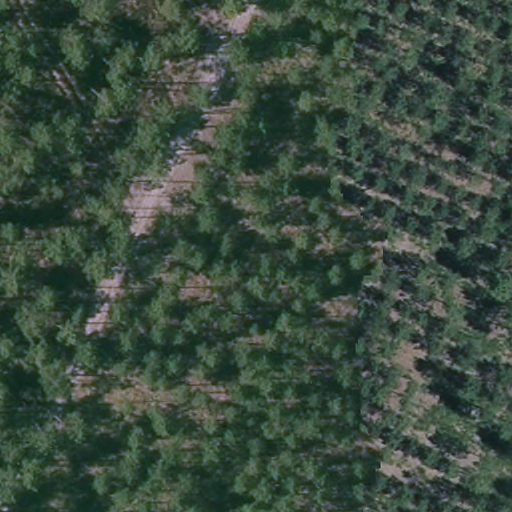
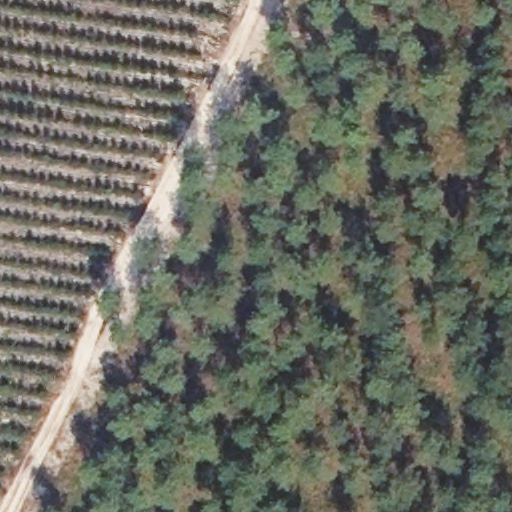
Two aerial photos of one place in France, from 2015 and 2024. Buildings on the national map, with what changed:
[]

